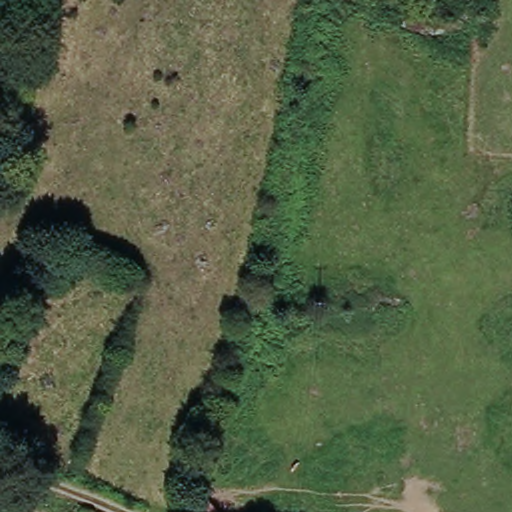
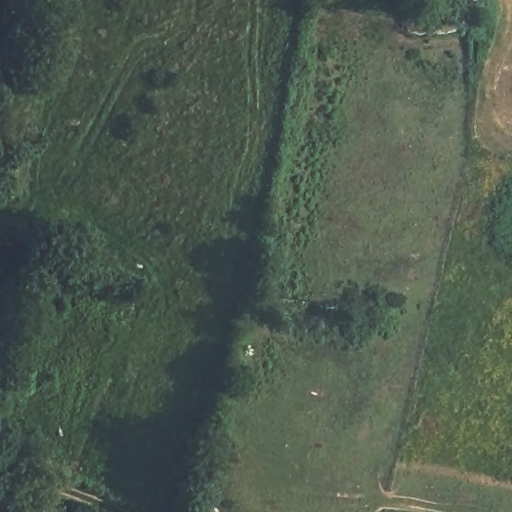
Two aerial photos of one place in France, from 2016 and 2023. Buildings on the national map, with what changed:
unchanged [(216,512),(189,512),(203,498),(216,512)]

